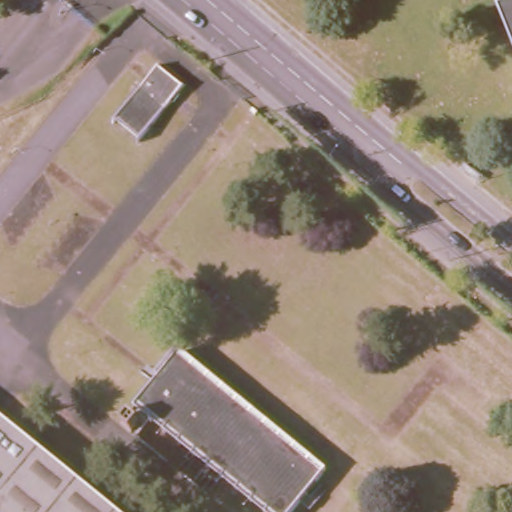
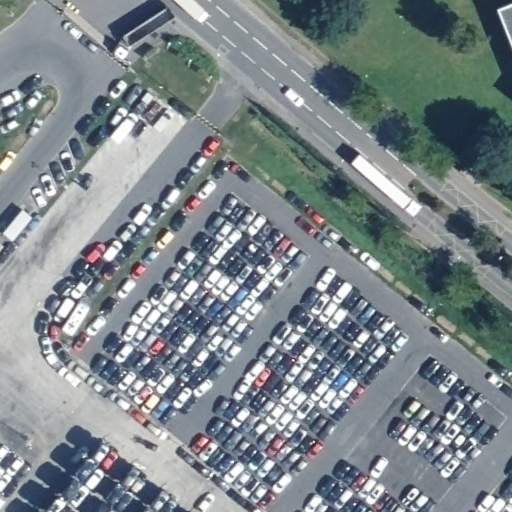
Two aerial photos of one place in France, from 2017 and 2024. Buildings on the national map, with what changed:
unchanged [(495,2),(500,0),(512,0),(512,42),(495,2)]
demolished [(152,126),(128,106),(158,69),(182,89),(152,126)]
demolished [(317,469),(283,512),(271,512),(265,508),(135,400),(176,352),(317,469)]
demolished [(0,512),(0,415),(119,512),(0,512)]

